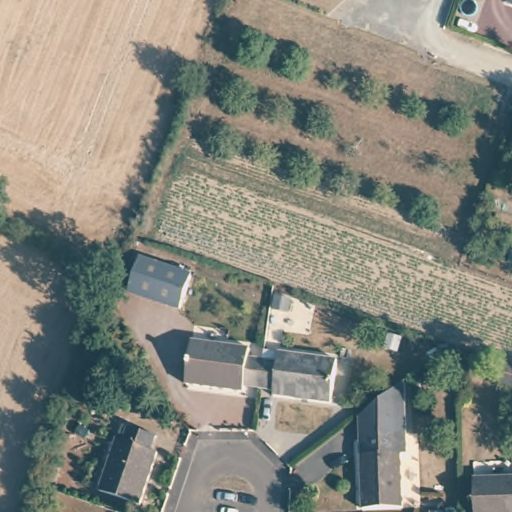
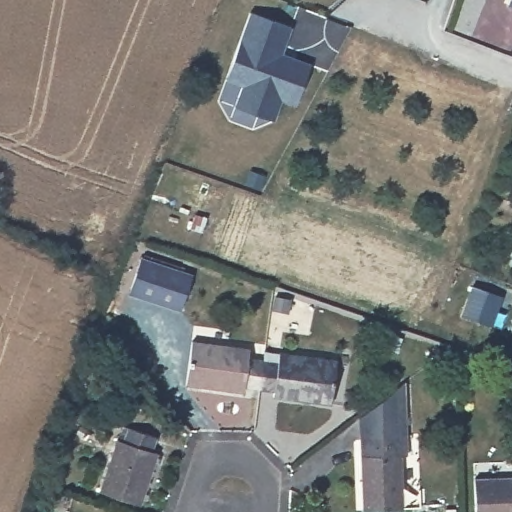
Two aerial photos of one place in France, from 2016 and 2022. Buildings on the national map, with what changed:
new [(282,54),(311,64),(296,106),(282,101),(275,121),(235,106),(242,86),(225,80),(249,11),(292,25),(282,54)]
unchanged [(194,275),(182,307),(131,288),(142,257),(194,275)]
unchanged [(402,340),(398,353),(386,350),(388,337),(402,340)]
unchanged [(245,387),(244,393),(186,385),(192,341),(250,348),(249,359),(262,361),(259,388),(245,387)]
unchanged [(264,353),(278,355),(279,352),(337,360),(331,404),(273,397),(274,390),(259,388),(262,361),(264,353)]
unchanged [(497,380),(502,363),(512,366),(512,384),(497,380)]
unchanged [(402,455),(403,508),(362,510),(362,436),(361,416),(377,404),(406,382),(407,456),(402,455)]
unchanged [(139,505),(100,491),(122,426),(156,437),(151,451),(157,453),(139,505)]
unchanged [(474,479),(512,478),(512,512),(475,512),(474,479)]

